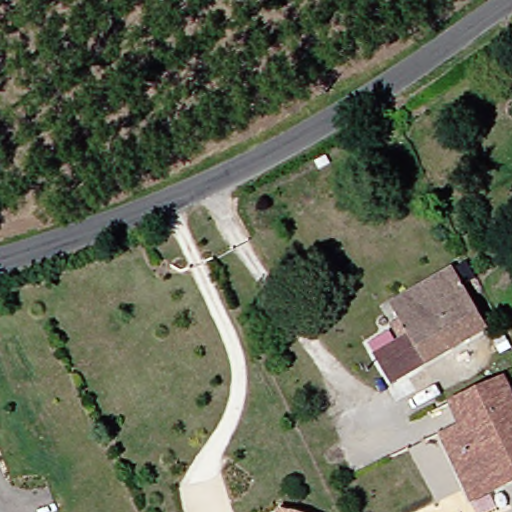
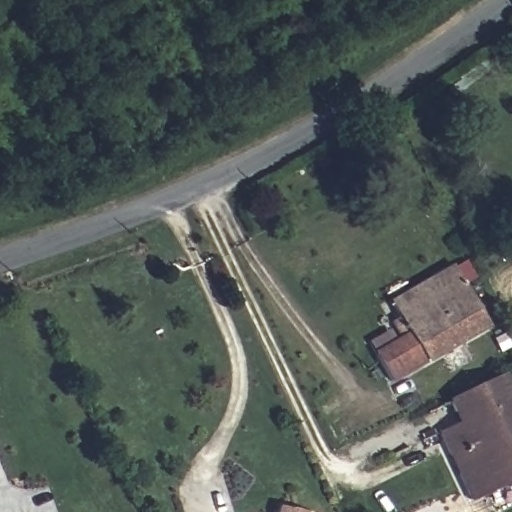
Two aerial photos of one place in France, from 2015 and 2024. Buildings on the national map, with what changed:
unchanged [(394,343),(385,330),(392,325),(383,307),(447,270),(480,330),(380,387),(364,359),(394,343)]
unchanged [(459,426),(447,402),(494,379),(494,381),(496,382),(499,381),(512,408),(512,488),(468,510),(435,437),(459,426)]
unchanged [(288,512),(273,512),(274,508),(288,512)]

